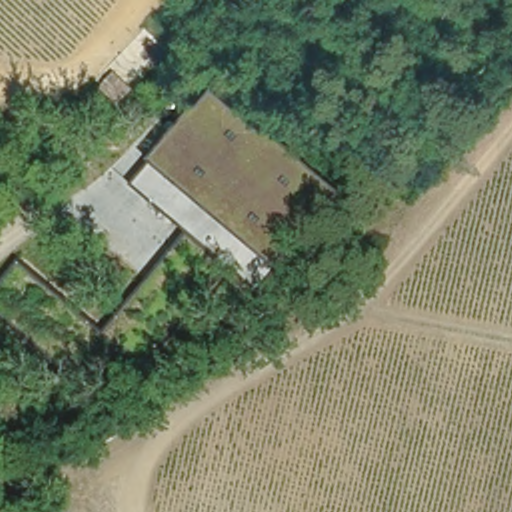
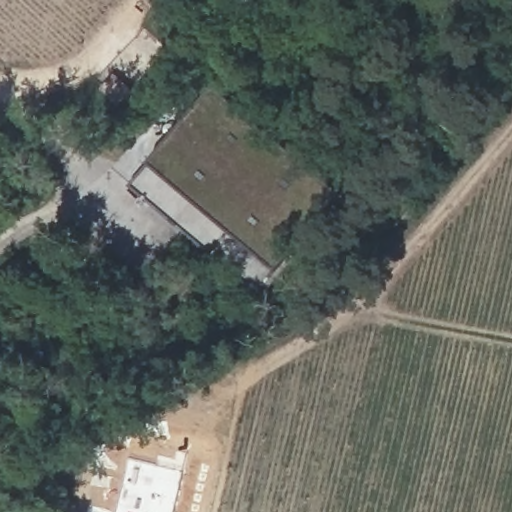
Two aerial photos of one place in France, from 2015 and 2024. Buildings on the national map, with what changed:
unchanged [(216,82),(351,191),(280,271),(151,162),(216,82)]
new [(173,512),(116,512),(128,460),(182,472),(173,512)]

